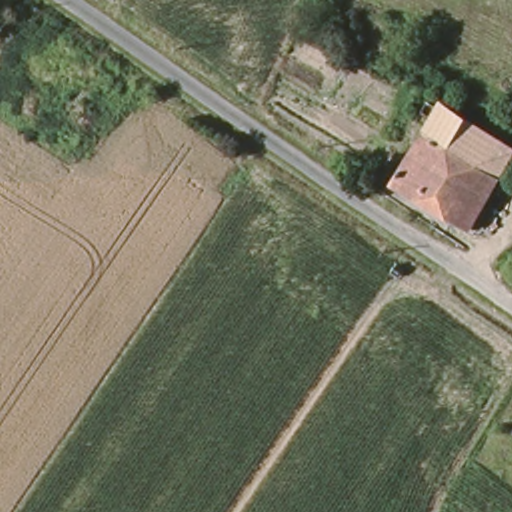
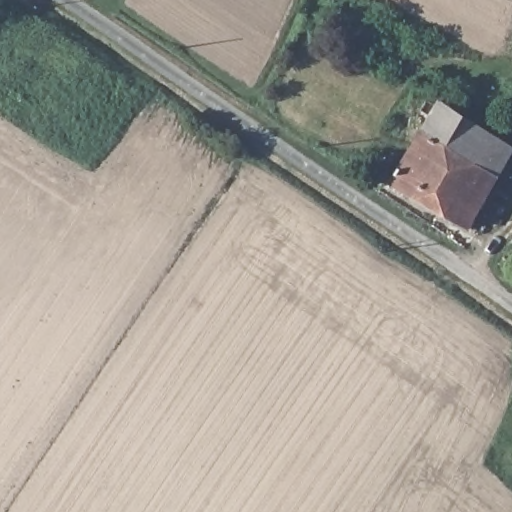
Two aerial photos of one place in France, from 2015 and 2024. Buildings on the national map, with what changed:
unchanged [(420,124),(430,104),(442,111),(444,105),(512,146),(512,163),(474,232),(398,188),(429,130),(420,124)]

